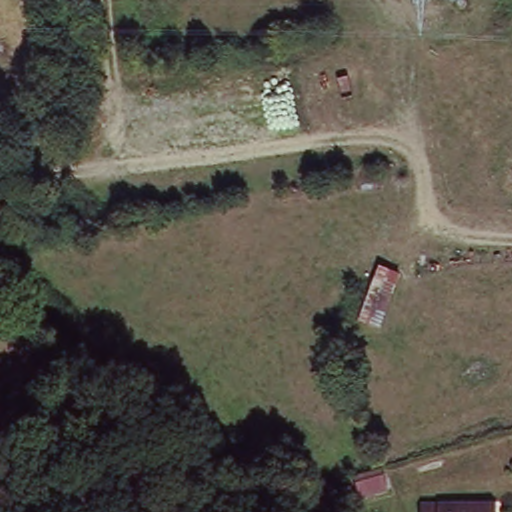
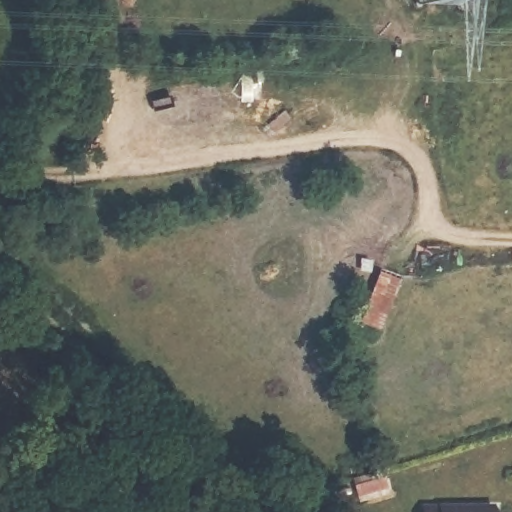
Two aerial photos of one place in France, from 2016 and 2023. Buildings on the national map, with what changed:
unchanged [(383,266),(404,274),(383,329),(362,321),(383,266)]
unchanged [(384,471),(387,488),(357,496),(354,481),(384,471)]
unchanged [(495,505),(495,512),(427,512),(427,505),(495,505)]

